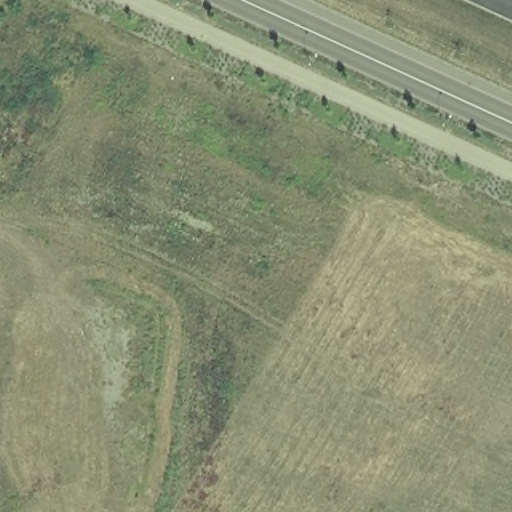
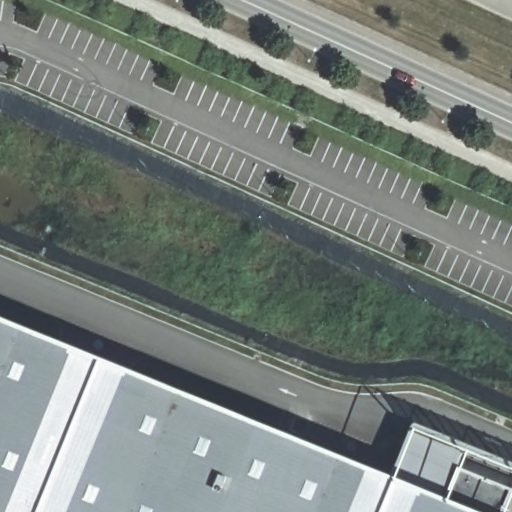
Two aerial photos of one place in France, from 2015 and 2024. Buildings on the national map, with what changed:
new [(0,322),(469,512),(0,512),(0,322)]

